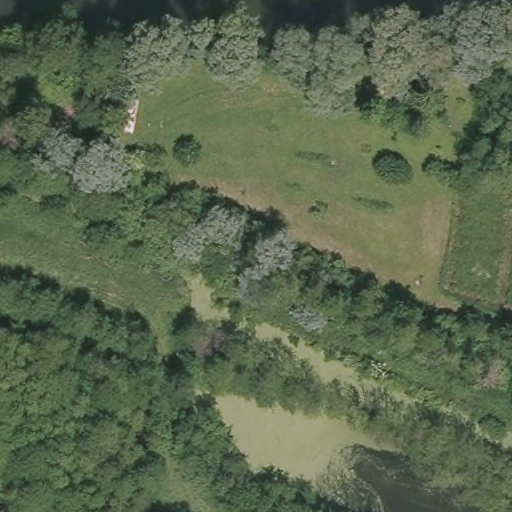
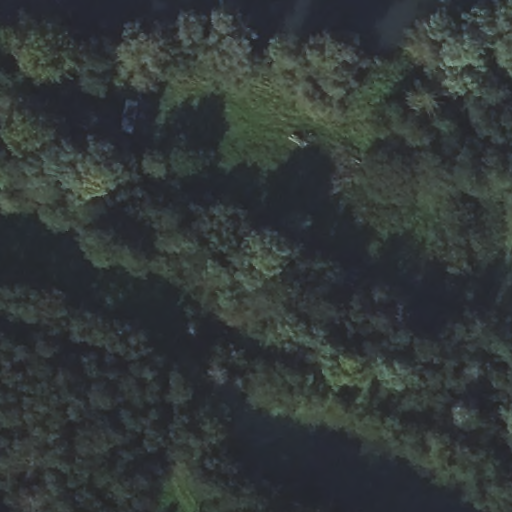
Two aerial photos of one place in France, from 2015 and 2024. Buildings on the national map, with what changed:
unchanged [(132,133),(115,130),(120,94),(140,98),(132,133)]

